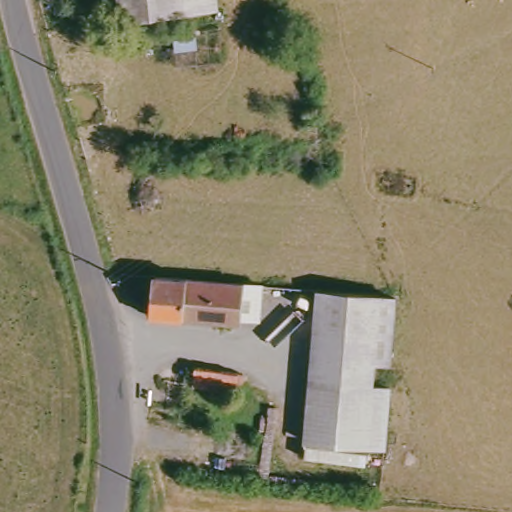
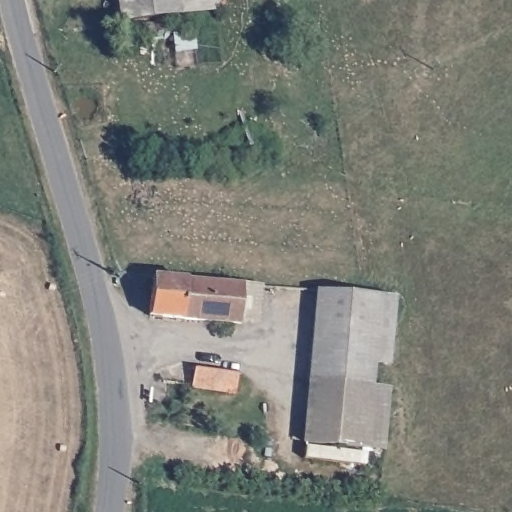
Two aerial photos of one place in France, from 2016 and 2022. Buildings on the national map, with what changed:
unchanged [(119,15),(117,0),(209,0),(210,6),(119,15)]
unchanged [(240,323),(152,315),(153,276),(243,285),(240,323)]
unchanged [(387,298),(381,364),(365,362),(363,387),(381,388),(375,449),(300,442),(313,291),(374,297),(387,298)]
unchanged [(237,373),(235,391),(193,385),(195,367),(237,373)]

